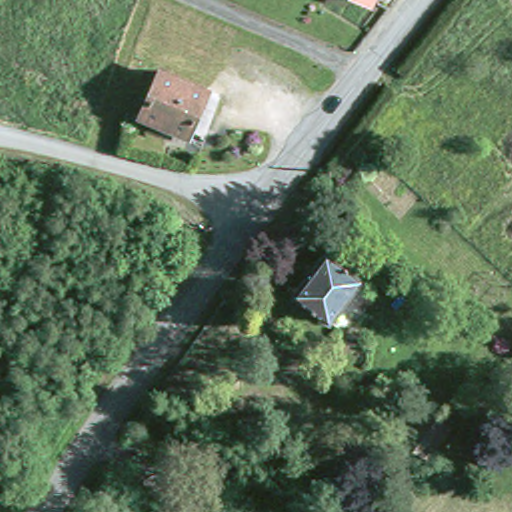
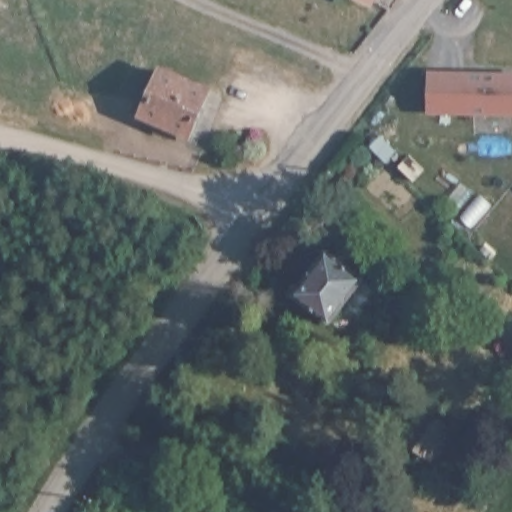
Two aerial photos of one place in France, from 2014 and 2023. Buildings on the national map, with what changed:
unchanged [(354,0),(369,0),(367,6),(354,0)]
new [(428,69),(512,71),(512,116),(427,114),(428,69)]
unchanged [(191,137),(145,118),(162,74),(208,92),(191,137)]
unchanged [(358,282),(370,291),(354,312),(342,302),(327,320),(290,291),(325,249),(362,278),(358,282)]
unchanged [(433,467),(437,462),(418,447),(431,429),(440,438),(447,429),(462,441),(455,449),(438,471),(433,467)]

